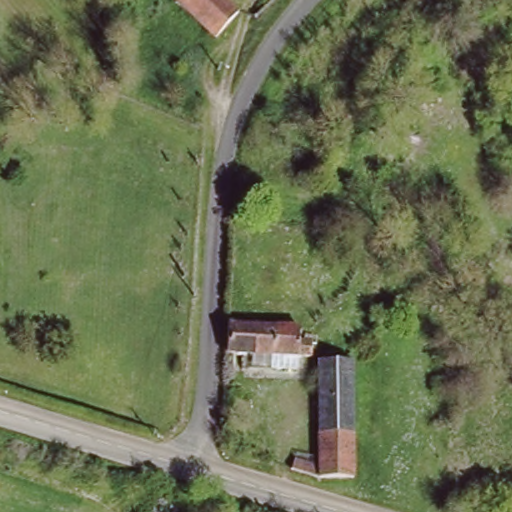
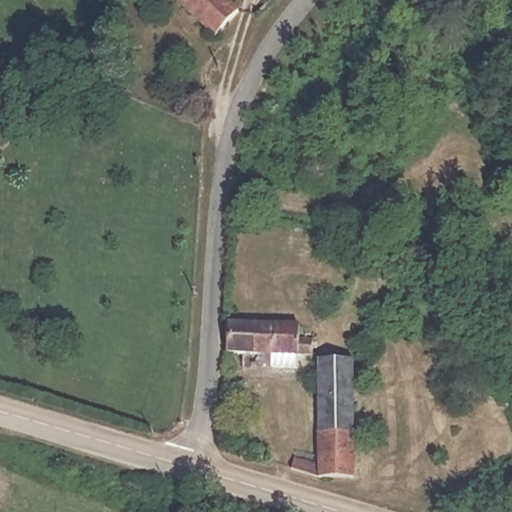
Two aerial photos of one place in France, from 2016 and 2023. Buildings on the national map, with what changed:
unchanged [(229,0),(242,14),(216,40),(176,0),(229,0)]
unchanged [(301,336),(312,337),(312,357),(228,354),(230,328),(230,322),(302,323),(301,336)]
unchanged [(295,472),(299,456),(322,463),(320,362),(352,361),(355,478),(320,479),(295,472)]

